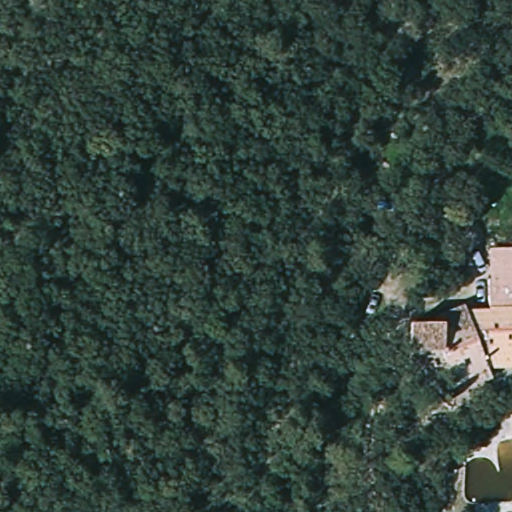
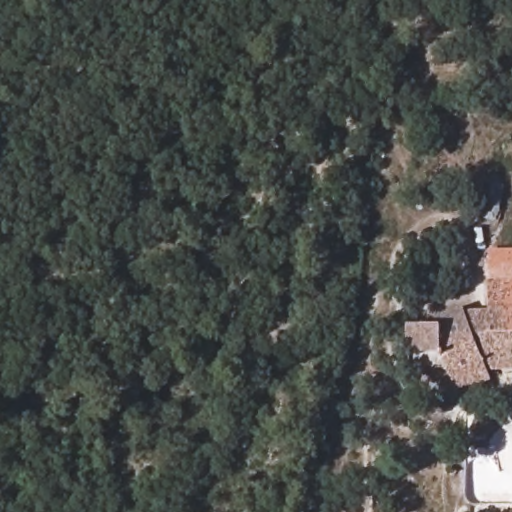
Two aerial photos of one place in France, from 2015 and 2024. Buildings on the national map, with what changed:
unchanged [(489,381),(458,393),(447,367),(408,367),(408,325),(435,325),(435,313),(460,304),(463,310),(487,311),(485,250),(512,250),(512,368),(486,368),(489,381)]

